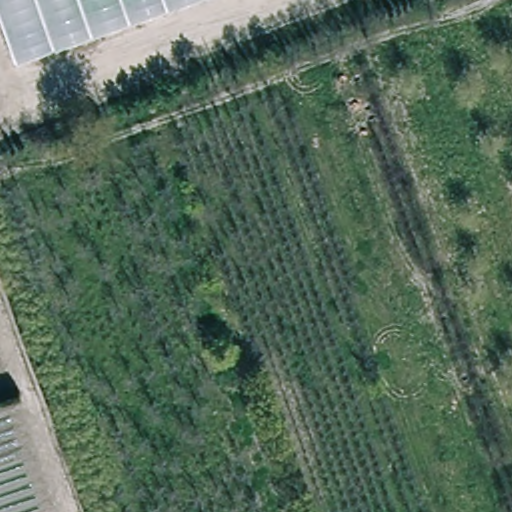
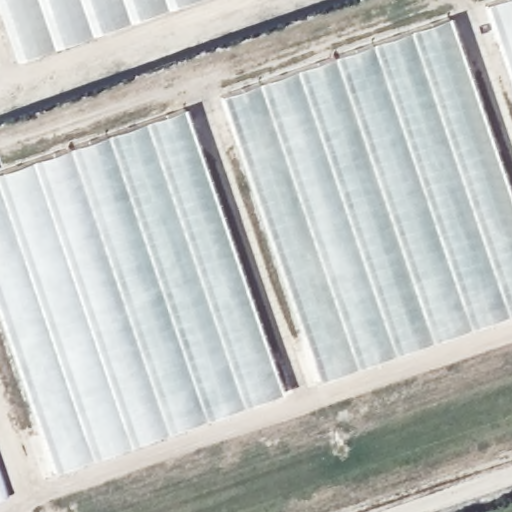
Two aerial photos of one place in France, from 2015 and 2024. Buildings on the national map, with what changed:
unchanged [(15,58),(0,16),(0,0),(185,0),(15,58)]
new [(484,7),(505,0),(512,0),(512,87),(484,7)]
new [(512,208),(512,311),(318,377),(219,98),(447,18),(512,208)]
new [(183,109),(280,390),(53,469),(0,319),(0,173),(183,109)]
new [(6,496),(0,499),(0,479),(6,496)]

